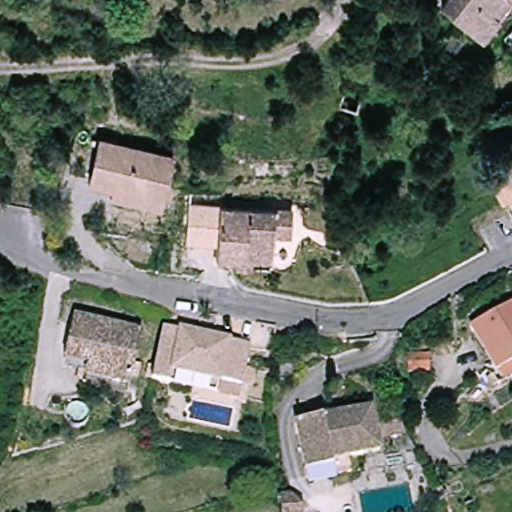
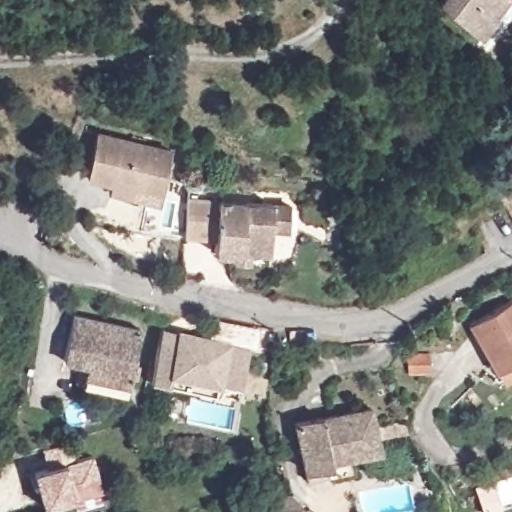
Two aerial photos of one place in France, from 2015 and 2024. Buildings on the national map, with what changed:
unchanged [(441,7),(448,0),(512,0),(512,4),(491,25),(473,42),(441,7)]
unchanged [(140,196),(108,186),(110,179),(87,172),(101,131),(173,154),(161,195),(159,202),(140,196)]
unchanged [(502,178),(512,172),(512,199),(502,178)]
unchanged [(238,254),(215,251),(215,232),(190,231),(191,185),(219,186),(220,195),(274,200),(292,201),(291,223),(272,222),(270,248),(256,247),(256,257),(238,256),(238,254)]
unchanged [(496,381),(491,368),(496,366),(475,321),(512,302),(512,374),(496,381)]
unchanged [(90,365),(66,360),(75,315),(143,329),(136,373),(131,395),(86,385),(90,365)]
unchanged [(166,333),(255,350),(247,393),(176,380),(173,392),(156,388),(166,333)]
unchanged [(425,358),(431,377),(403,385),(396,367),(425,358)]
unchanged [(306,473),(304,456),(300,411),(380,406),(381,423),(403,422),(410,440),(381,441),(382,450),(353,452),(356,468),(306,473)]
new [(101,489),(74,498),(43,506),(33,472),(66,462),(94,456),(101,489)]
unchanged [(283,492),(294,493),(308,505),(308,512),(284,512),(283,492)]

